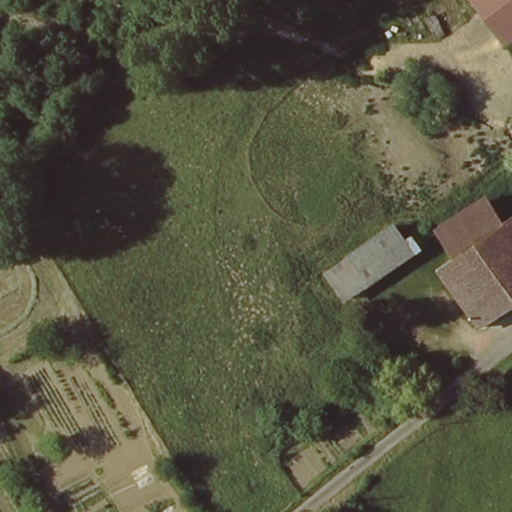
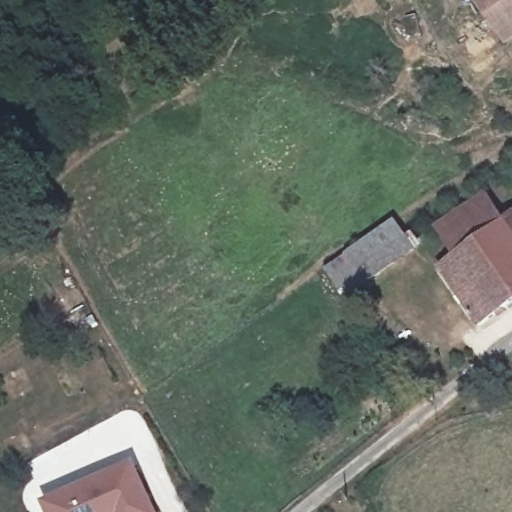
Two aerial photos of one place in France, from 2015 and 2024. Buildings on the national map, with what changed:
unchanged [(471,0),(512,0),(512,40),(505,45),(471,0)]
unchanged [(439,237),(468,212),(477,204),(501,229),(462,263),(439,237)]
unchanged [(416,241),(425,254),(345,309),(323,276),(395,224),(412,242),(416,241)]
unchanged [(512,240),(512,311),(490,330),(442,281),(462,263),(501,229),(512,240)]
new [(155,512),(46,512),(43,506),(134,465),(155,512)]

